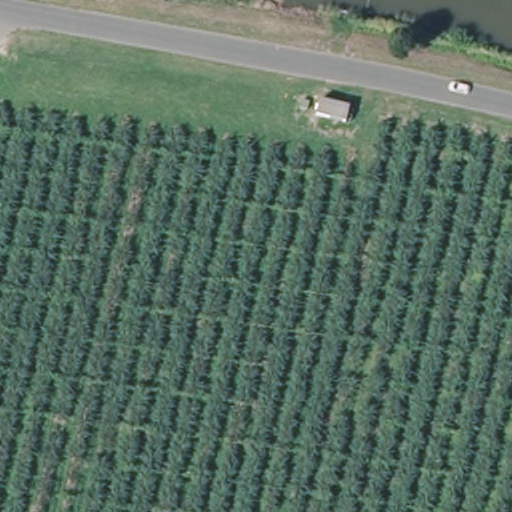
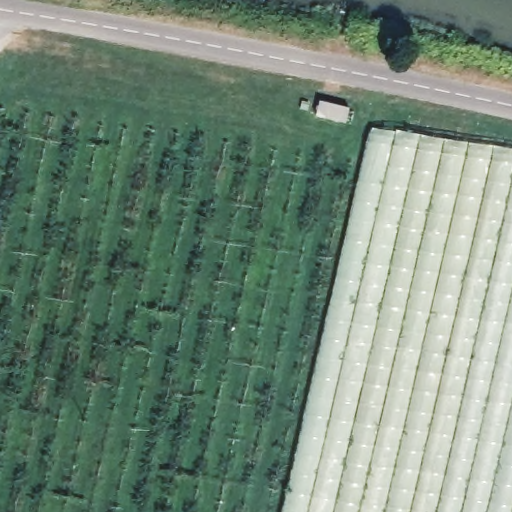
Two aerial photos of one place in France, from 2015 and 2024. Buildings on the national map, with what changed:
unchanged [(337,131),(306,127),(309,112),(339,115),(337,131)]
new [(369,128),(512,149),(512,512),(284,512),(369,128)]

